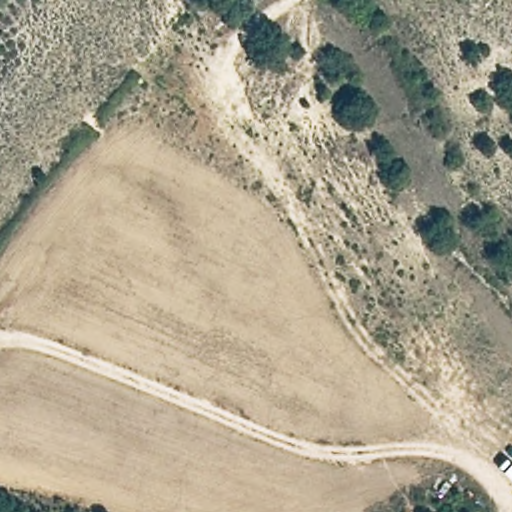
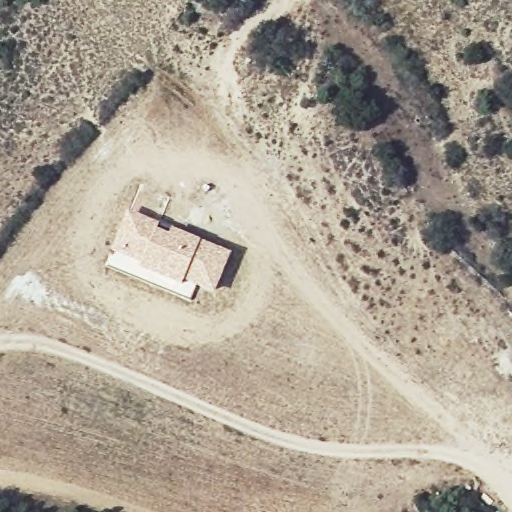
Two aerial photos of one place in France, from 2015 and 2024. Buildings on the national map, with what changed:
new [(127,211),(158,225),(157,228),(167,233),(169,228),(230,254),(213,294),(183,283),(180,288),(147,273),(108,249),(127,211)]

